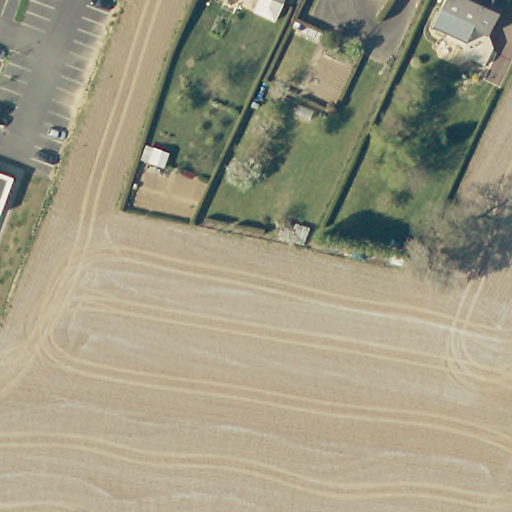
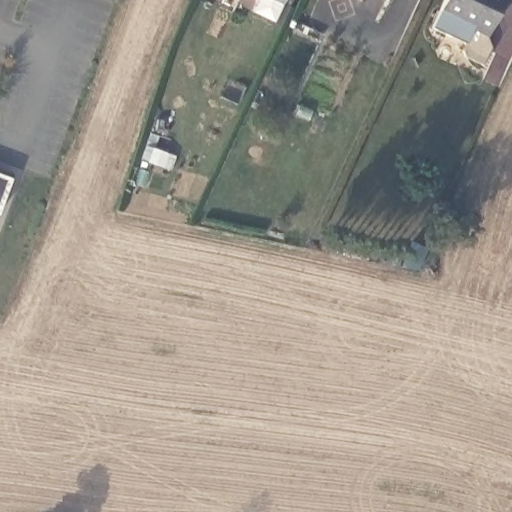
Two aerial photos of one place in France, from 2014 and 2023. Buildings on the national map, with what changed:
unchanged [(492,57),(466,47),(476,20),(442,6),(444,0),(503,0),(492,26),(498,41),(492,57)]
unchanged [(12,178),(0,209),(0,174),(12,178)]

